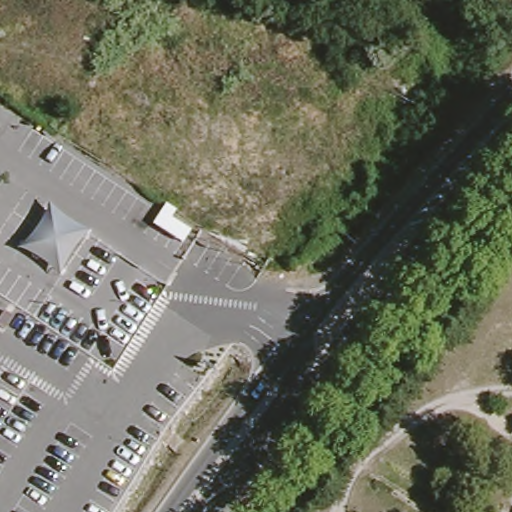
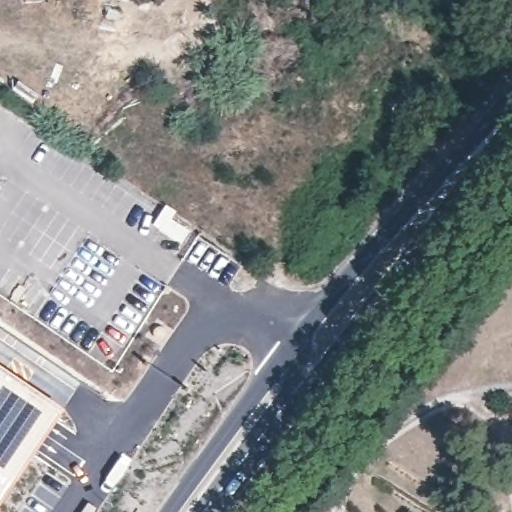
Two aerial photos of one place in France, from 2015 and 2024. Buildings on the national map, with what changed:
new [(0,501),(0,365),(63,406),(0,501)]

